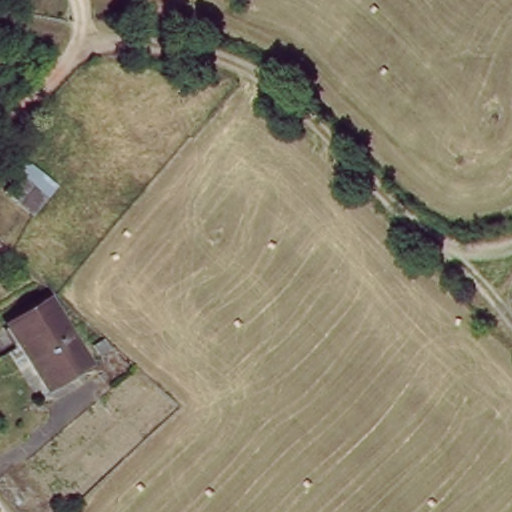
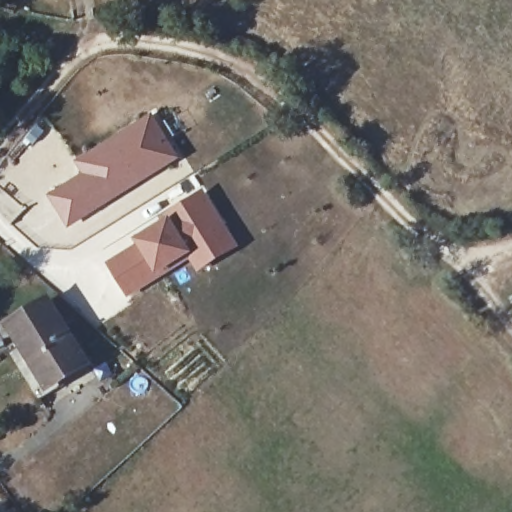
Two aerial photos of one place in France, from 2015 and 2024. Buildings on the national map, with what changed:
new [(85,174),(77,161),(156,116),(182,161),(70,229),(50,195),(85,174)]
demolished [(16,191),(34,171),(46,182),(28,203),(16,191)]
new [(175,221),(170,212),(210,190),(241,247),(201,270),(195,260),(128,298),(108,260),(175,221)]
unchanged [(50,387),(10,321),(50,297),(90,362),(50,387)]

